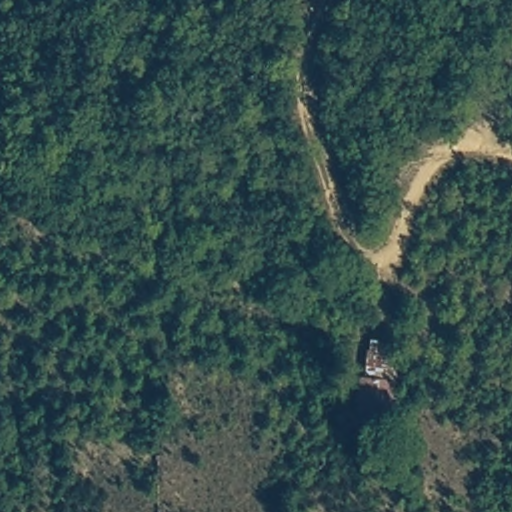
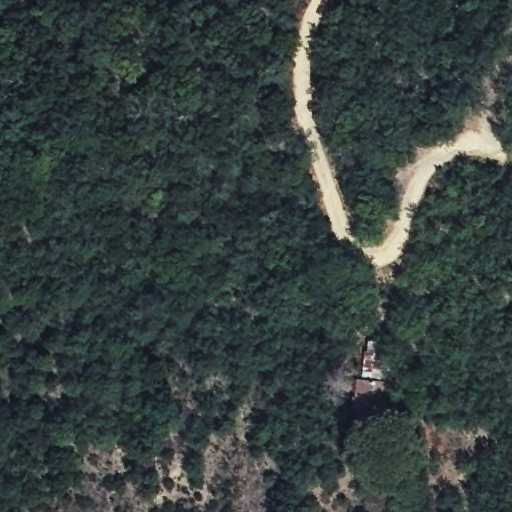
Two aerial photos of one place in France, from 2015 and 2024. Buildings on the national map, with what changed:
unchanged [(390,385),(387,423),(353,419),(356,382),(390,385)]

